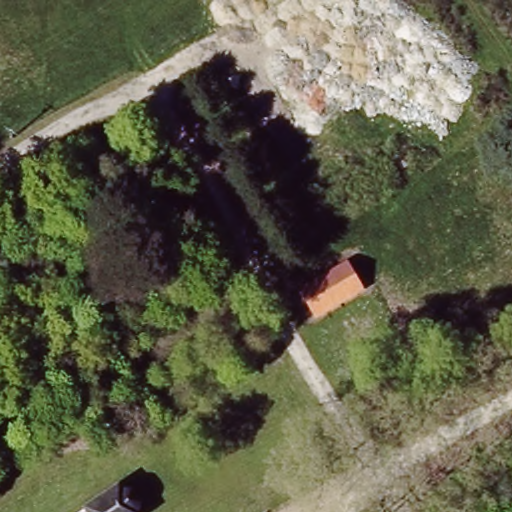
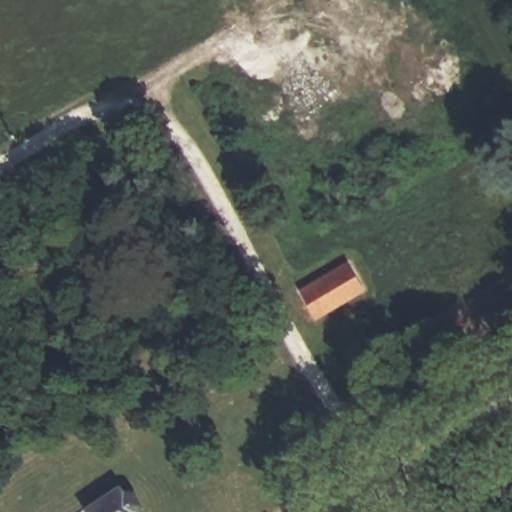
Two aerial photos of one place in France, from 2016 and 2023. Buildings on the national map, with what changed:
unchanged [(360,296),(314,320),(301,295),(346,271),(360,296)]
unchanged [(127,482),(145,496),(142,510),(144,512),(86,512),(84,508),(127,482)]

